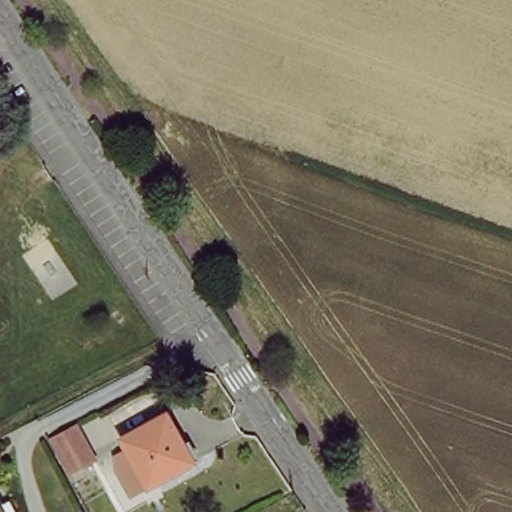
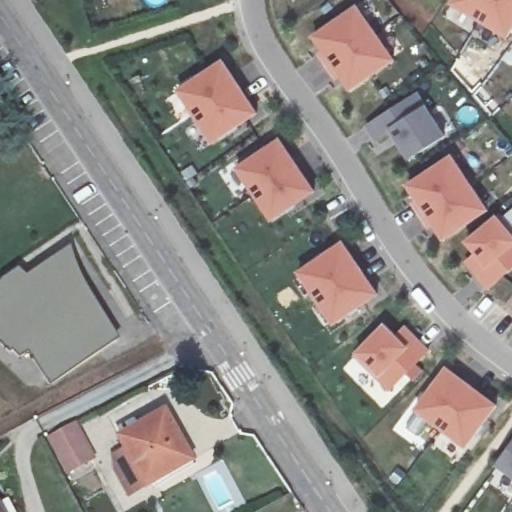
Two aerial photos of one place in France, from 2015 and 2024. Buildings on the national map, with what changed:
new [(460,3),(462,0),(512,0),(512,35),(460,3)]
new [(369,3),(407,60),(358,91),(322,36),(369,3)]
new [(233,58),(266,111),(221,141),(186,90),(233,58)]
new [(424,90),(433,106),(437,104),(456,137),(419,160),(399,128),(379,141),(369,126),(424,90)]
new [(289,137),(324,189),(281,220),(246,168),(289,137)]
new [(464,153),(499,209),(451,239),(414,185),(464,153)]
new [(508,214),(512,219),(512,276),(494,291),(472,262),(485,251),(476,242),(508,214)]
new [(353,241),(387,292),(342,324),(307,272),(353,241)]
new [(21,273),(34,286),(45,275),(58,278),(75,266),(80,268),(79,276),(85,277),(85,285),(90,287),(91,295),(95,296),(96,303),(100,305),(103,312),(105,314),(108,321),(111,323),(120,338),(55,381),(33,348),(25,352),(18,345),(14,348),(0,335),(0,295),(8,282),(21,273)]
new [(362,349),(364,352),(394,323),(403,333),(412,324),(437,352),(393,393),(354,356),(362,349)]
new [(457,366),(508,404),(476,449),(424,410),(457,366)]
unchanged [(188,458),(140,485),(113,438),(163,410),(188,458)]
unchanged [(68,482),(48,447),(78,428),(99,465),(68,482)]
new [(512,458),(512,472),(506,467),(512,458)]

